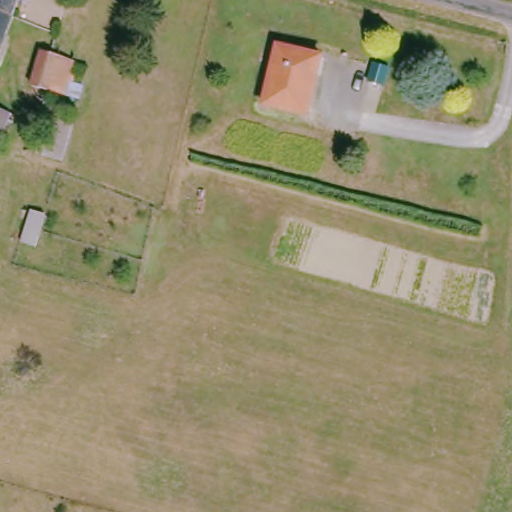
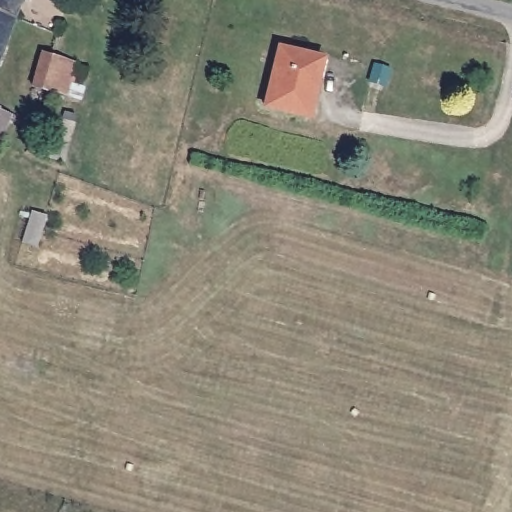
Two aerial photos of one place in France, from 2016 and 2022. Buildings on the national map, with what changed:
unchanged [(17,25),(0,18),(0,0),(27,0),(17,25)]
unchanged [(17,25),(0,70),(0,18),(17,25)]
unchanged [(312,115),(266,102),(281,41),(326,53),(312,115)]
unchanged [(63,92),(48,87),(32,81),(43,53),(51,55),(60,59),(74,64),(63,92)]
unchanged [(15,118),(2,150),(0,149),(0,112),(15,118)]
unchanged [(67,151),(45,141),(55,118),(78,127),(67,151)]

